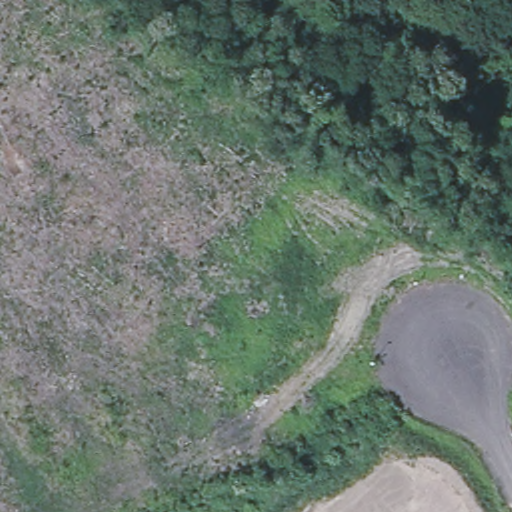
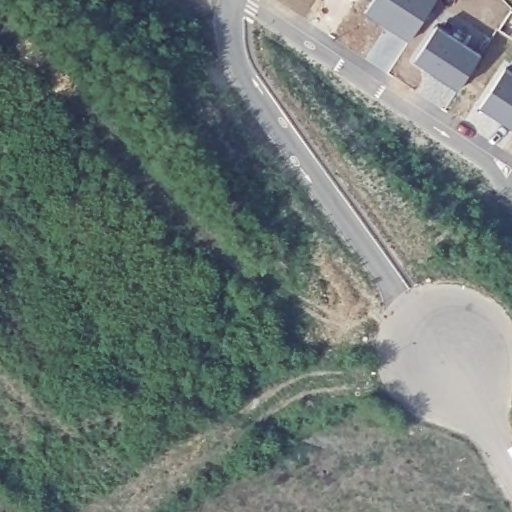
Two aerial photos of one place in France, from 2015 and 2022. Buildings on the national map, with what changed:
new [(371,0),(434,0),(407,40),(393,30),(395,27),(381,18),(379,21),(364,11),(371,0)]
new [(435,25),(479,54),(456,90),(441,81),(443,78),(414,58),(435,25)]
new [(504,68),(512,73),(512,127),(499,119),(500,117),(491,110),(489,112),(479,105),(504,68)]

